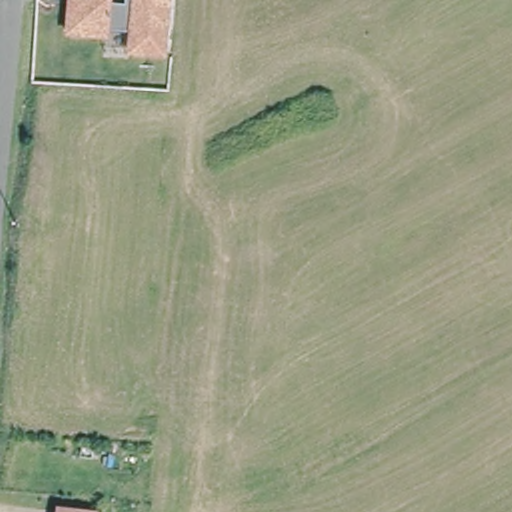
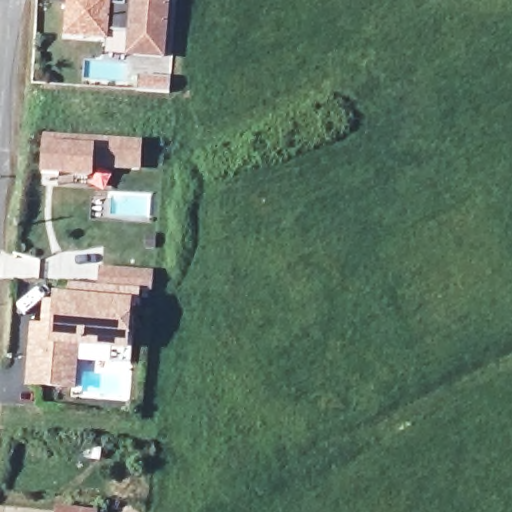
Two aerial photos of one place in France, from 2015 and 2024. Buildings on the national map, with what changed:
unchanged [(129,5),(130,0),(172,0),(167,54),(134,52),(136,31),(110,29),(110,35),(72,32),(75,0),(113,0),(112,4),(129,5)]
new [(43,135),(140,141),(137,167),(90,165),(90,175),(52,172),(53,167),(41,167),(43,135)]
new [(153,271),(151,288),(140,288),(139,307),(132,307),(127,351),(80,348),(75,390),(26,387),(30,323),(41,325),(43,301),(53,302),(54,295),(70,297),(70,285),(99,287),(100,267),(153,271)]
unchanged [(56,510),(78,512),(56,512),(56,510)]

